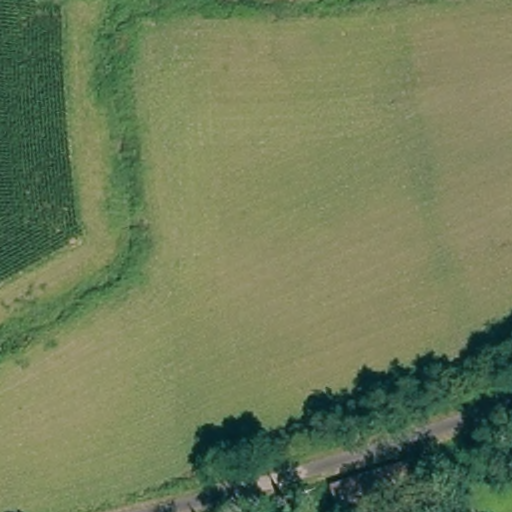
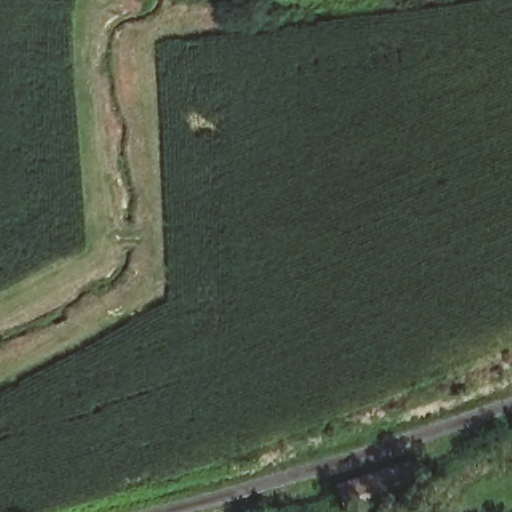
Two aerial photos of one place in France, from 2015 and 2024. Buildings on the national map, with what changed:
unchanged [(425,487),(357,508),(350,487),(417,464),(425,487)]

